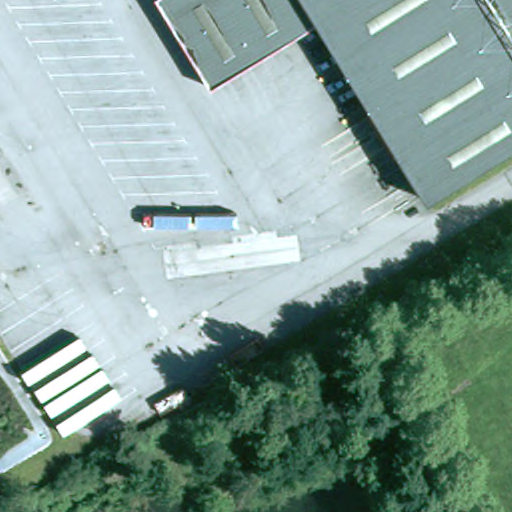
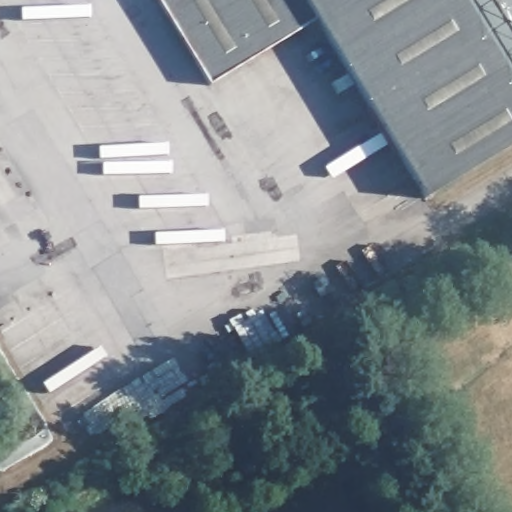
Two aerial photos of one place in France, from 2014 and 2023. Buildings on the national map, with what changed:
unchanged [(319,25),(209,91),(154,0),(512,0),(512,150),(425,202),(319,25)]

